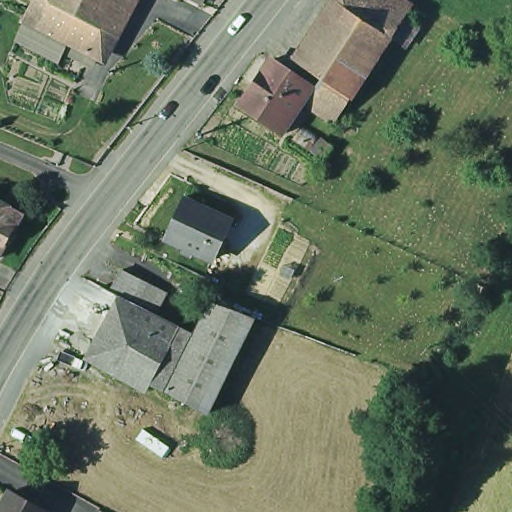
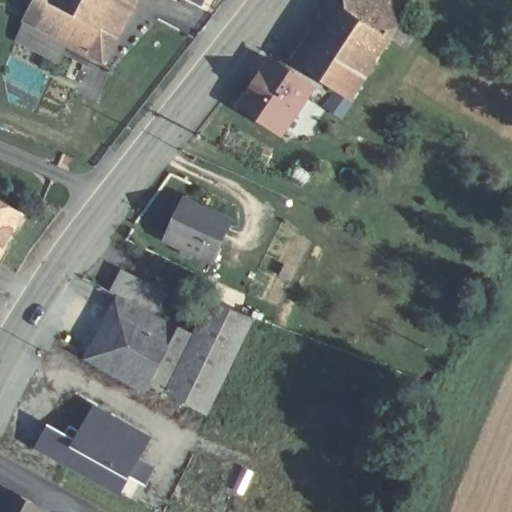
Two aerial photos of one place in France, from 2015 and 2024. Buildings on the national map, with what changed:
unchanged [(28,0),(110,0),(86,48),(22,15),(21,15),(28,0)]
unchanged [(350,0),(411,0),(413,1),(352,95),(336,120),(309,102),(326,76),(306,63),(350,0)]
unchanged [(12,35),(22,15),(86,48),(80,60),(59,49),(54,56),(12,35)]
unchanged [(310,90),(282,130),(241,101),(272,57),(309,83),(306,86),(310,90)]
unchanged [(197,255),(189,250),(167,240),(176,220),(182,205),(185,201),(190,204),(203,211),(230,224),(212,261),(197,255)]
unchanged [(0,250),(0,212),(16,221),(0,250)]
unchanged [(210,310),(257,328),(208,419),(191,410),(102,365),(127,308),(112,301),(122,279),(149,292),(168,302),(157,323),(193,342),(210,310)]
new [(138,501),(122,492),(121,493),(39,449),(50,428),(66,437),(70,429),(71,426),(83,433),(97,408),(151,438),(140,460),(156,469),(138,501)]
unchanged [(44,512),(2,512),(11,495),(44,512)]

